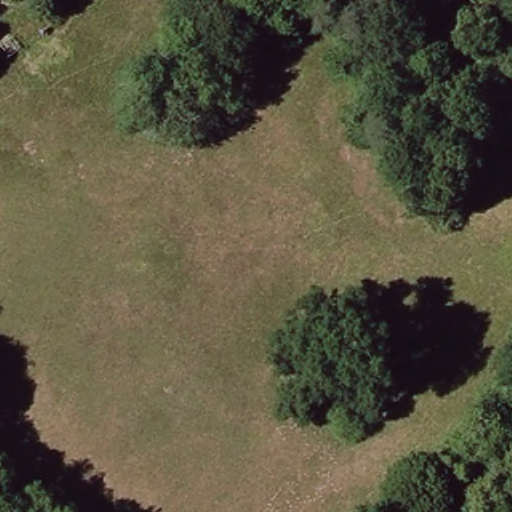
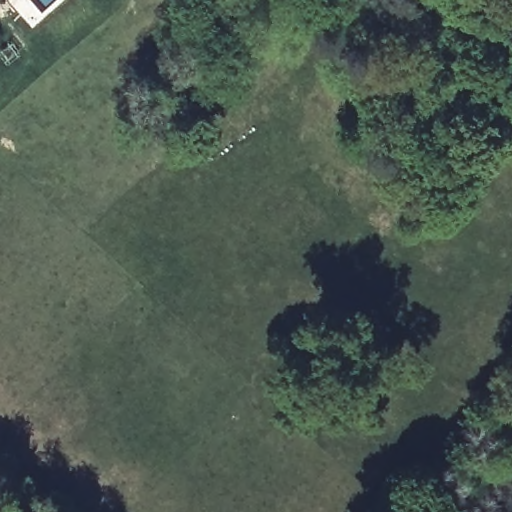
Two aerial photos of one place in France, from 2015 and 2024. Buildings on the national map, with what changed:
[]

